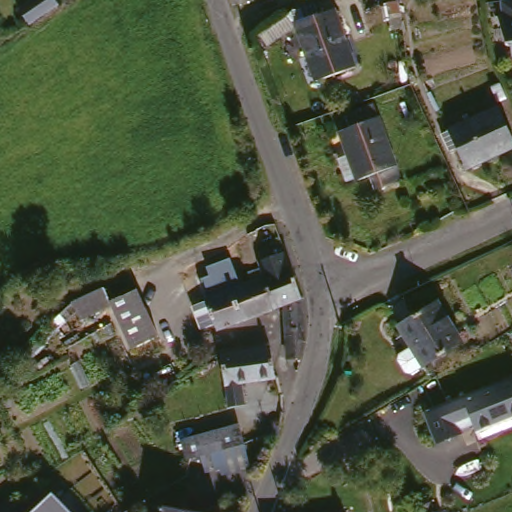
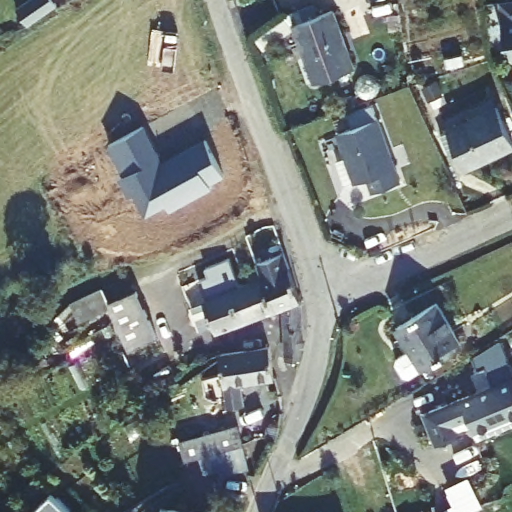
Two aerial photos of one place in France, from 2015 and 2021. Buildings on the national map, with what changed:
unchanged [(61,0),(64,4),(33,21),(24,4),(31,0),(61,0)]
unchanged [(510,21),(510,0),(512,0),(512,39),(510,39),(510,21)]
unchanged [(337,8),(358,65),(318,79),(297,21),(337,8)]
unchanged [(512,125),(512,152),(475,169),(456,129),(505,107),(512,125)]
unchanged [(387,119),(411,179),(383,190),(377,177),(364,182),(346,134),(387,119)]
new [(141,128),(159,159),(155,161),(159,167),(205,141),(224,174),(209,183),(212,186),(171,209),(167,202),(147,213),(137,193),(131,196),(121,179),(125,175),(109,146),(141,128)]
unchanged [(288,308),(280,310),(267,279),(297,269),(308,295),(310,335),(307,344),(302,363),(286,360),(288,308)]
unchanged [(267,279),(280,310),(223,332),(210,300),(267,279)]
unchanged [(162,344),(133,354),(116,305),(88,315),(83,305),(97,293),(110,286),(116,304),(146,294),(162,344)]
unchanged [(445,300),(470,341),(430,367),(403,325),(445,300)]
unchanged [(257,352),(274,349),(276,383),(244,389),(246,408),(232,410),(223,357),(257,352)]
unchanged [(512,373),(512,413),(476,428),(470,413),(456,419),(460,429),(435,439),(422,409),(512,373)]
unchanged [(270,423),(280,424),(276,433),(273,433),(266,434),(270,423)]
unchanged [(257,466),(215,475),(214,469),(212,458),(202,461),(196,462),(194,453),(192,439),(250,429),(255,449),(257,466)]
unchanged [(70,512),(30,512),(54,493),(70,512)]
unchanged [(223,509),(223,512),(170,512),(170,509),(223,509)]

